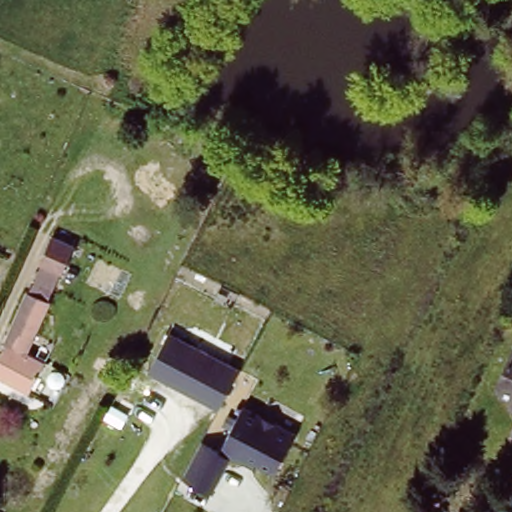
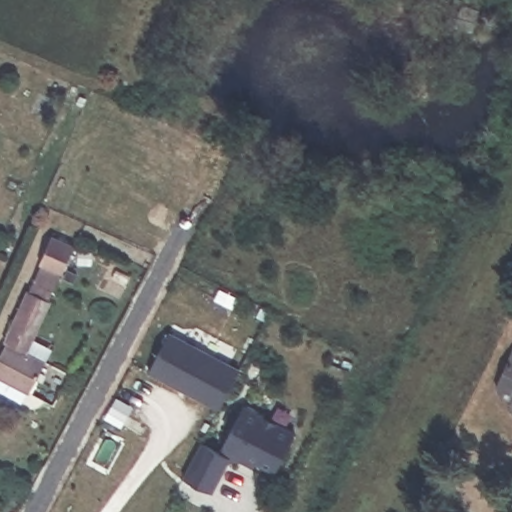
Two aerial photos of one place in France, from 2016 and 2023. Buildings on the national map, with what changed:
unchanged [(77,246),(28,354),(51,365),(37,399),(0,380),(0,347),(53,235),(77,246)]
unchanged [(165,331),(237,369),(218,408),(147,372),(165,331)]
unchanged [(512,353),(512,392),(497,383),(512,353)]
unchanged [(215,455),(239,410),(290,435),(272,472),(245,459),(233,463),(227,460),(208,495),(179,481),(197,446),(215,455)]

